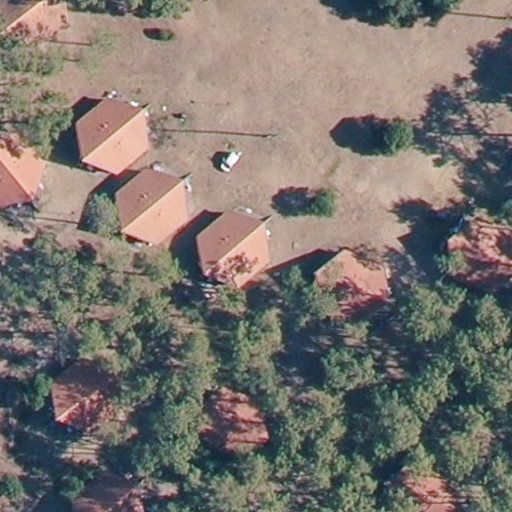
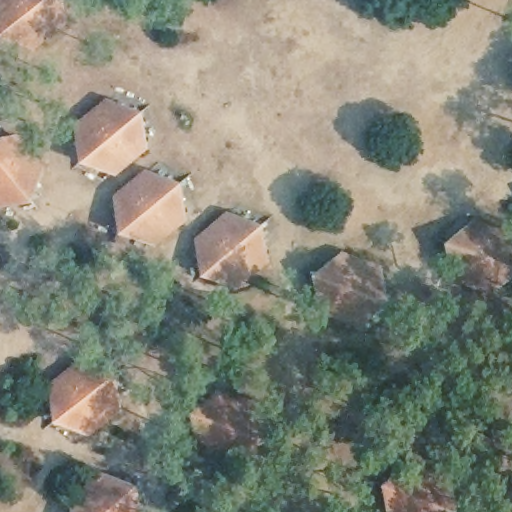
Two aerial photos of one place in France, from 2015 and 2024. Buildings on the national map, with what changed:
unchanged [(2,0),(59,0),(61,15),(62,28),(31,53),(14,46),(0,41),(0,2),(2,0)]
unchanged [(77,141),(75,128),(108,102),(124,107),(141,114),(144,131),(146,147),(114,175),(100,170),(80,161),(77,141)]
unchanged [(15,205),(0,208),(0,138),(15,136),(42,170),(37,185),(30,203),(15,205)]
unchanged [(117,212),(115,199),(146,172),(162,179),(180,185),(183,204),(186,219),(152,245),(142,241),(120,233),(117,212)]
unchanged [(199,255),(196,241),(230,215),(243,220),(262,226),(266,246),(268,260),(235,288),(222,283),(202,275),(199,255)]
unchanged [(488,297),(447,281),(445,267),(440,249),(456,236),(468,227),(508,242),(511,256),(512,261),(512,278),(498,289),(488,297)]
unchanged [(371,315),(358,325),(321,312),(318,295),(315,276),(330,265),(342,256),(381,270),(383,283),(387,303),(371,315)]
unchanged [(52,402),(50,386),(84,361),(95,365),(115,375),(119,396),(121,408),(87,435),(72,429),(55,421),(52,402)]
unchanged [(249,459),(237,468),(199,453),(195,436),(192,418),(210,405),(220,396),(260,412),(261,426),(265,446),(249,459)]
unchanged [(389,489),(405,477),(416,469),(456,485),(458,498),(461,512),(393,512),(392,508),(389,489)]
unchanged [(102,476),(118,481),(136,487),(139,508),(140,512),(73,512),(72,502),(102,476)]

